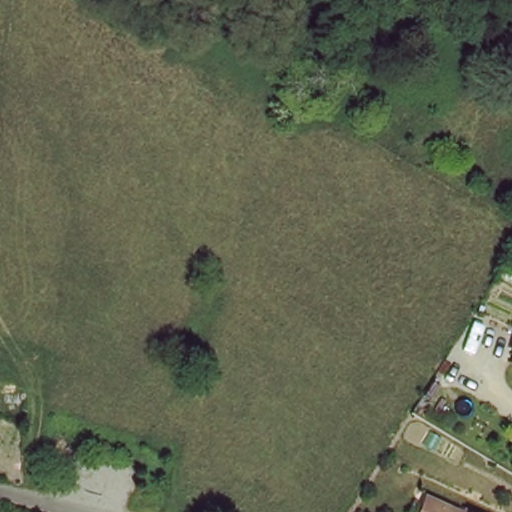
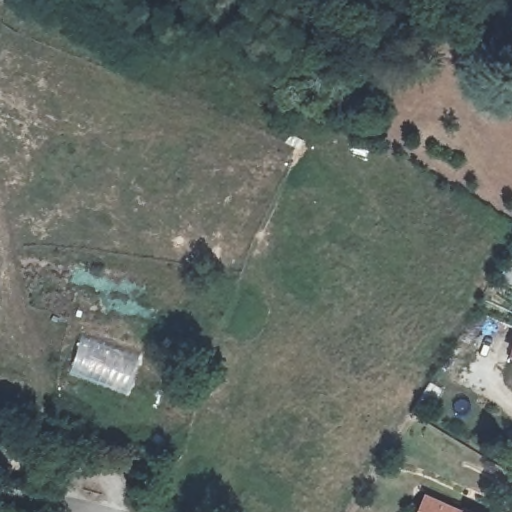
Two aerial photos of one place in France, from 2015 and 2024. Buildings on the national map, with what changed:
new [(81,336),(143,356),(128,395),(68,372),(81,336)]
unchanged [(423,504),(426,497),(440,503),(460,512),(420,512),(423,504)]

